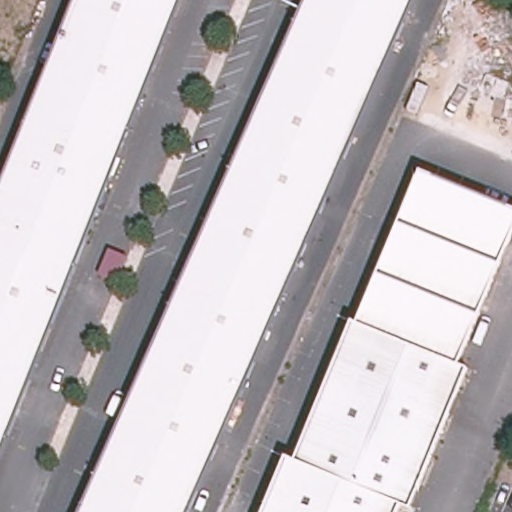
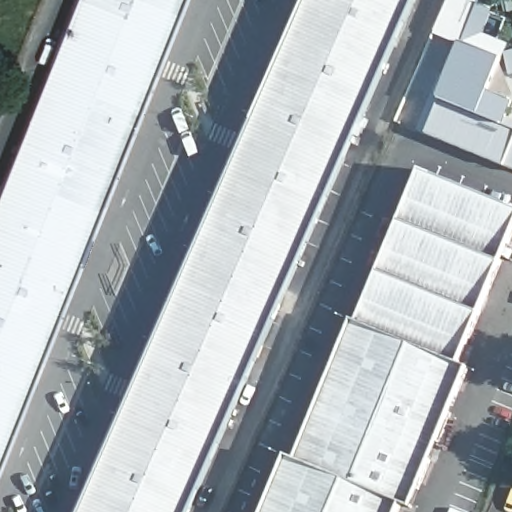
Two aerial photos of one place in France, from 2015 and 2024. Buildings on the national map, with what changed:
unchanged [(0,187),(74,0),(182,0),(0,457),(0,187)]
unchanged [(77,512),(303,0),(412,0),(186,512),(77,512)]
new [(438,76),(446,78),(460,44),(433,32),(449,0),(479,0),(480,0),(479,4),(493,11),(485,35),(508,45),(501,66),(512,90),(512,110),(510,113),(512,115),(512,144),(504,164),(418,132),(438,76)]
unchanged [(350,318),(416,166),(512,206),(512,228),(458,361),(350,318)]
unchanged [(258,512),(281,456),(290,459),(347,320),(463,368),(406,508),(396,504),(393,512),(258,512)]

